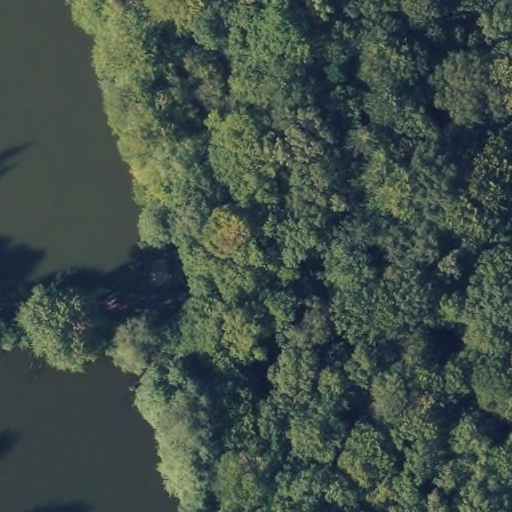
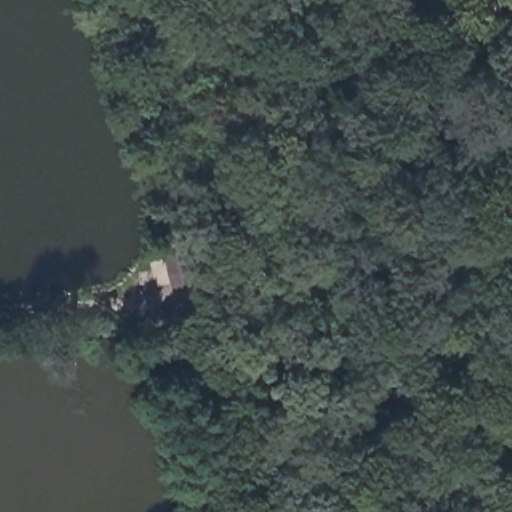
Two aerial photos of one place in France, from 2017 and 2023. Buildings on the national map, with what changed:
unchanged [(202,262),(198,299),(188,298),(161,295),(156,295),(161,258),(162,258),(168,259),(202,262)]

